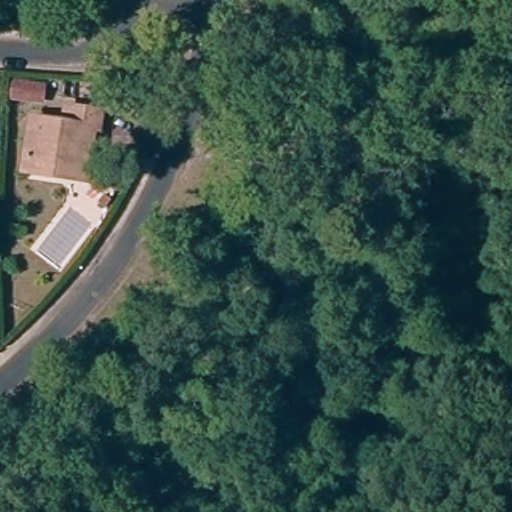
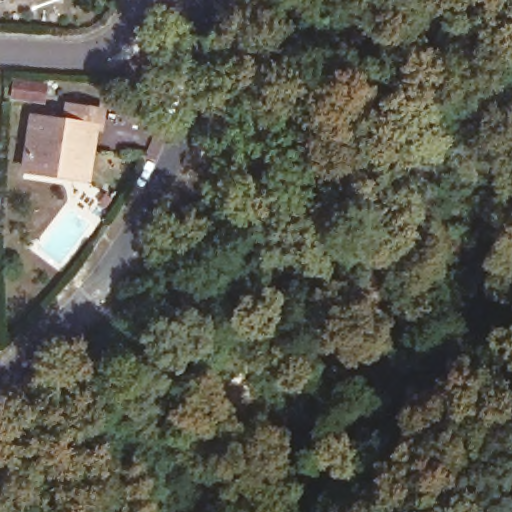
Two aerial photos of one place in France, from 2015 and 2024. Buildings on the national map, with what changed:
unchanged [(14,83),(46,87),(44,104),(13,100),(14,83)]
unchanged [(42,173),(22,170),(30,119),(60,123),(61,109),(98,114),(96,132),(89,131),(87,146),(82,179),(42,173)]

